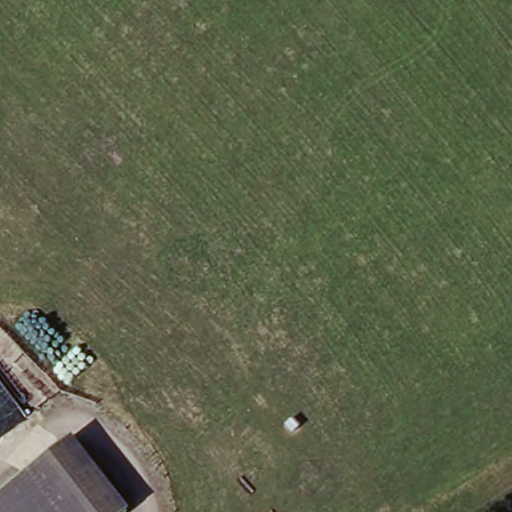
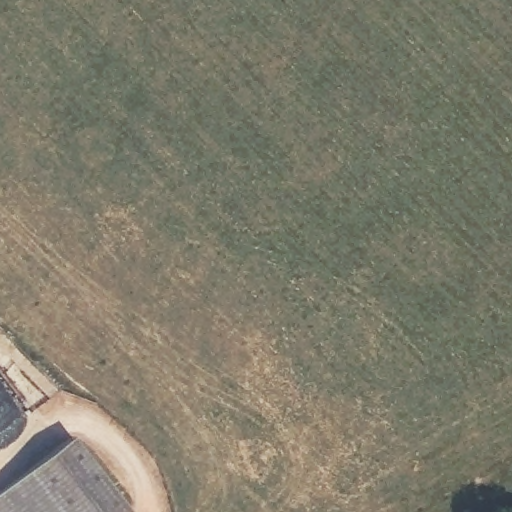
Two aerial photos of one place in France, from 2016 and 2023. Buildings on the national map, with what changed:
unchanged [(71,446),(123,512),(0,512),(0,498),(71,446)]

